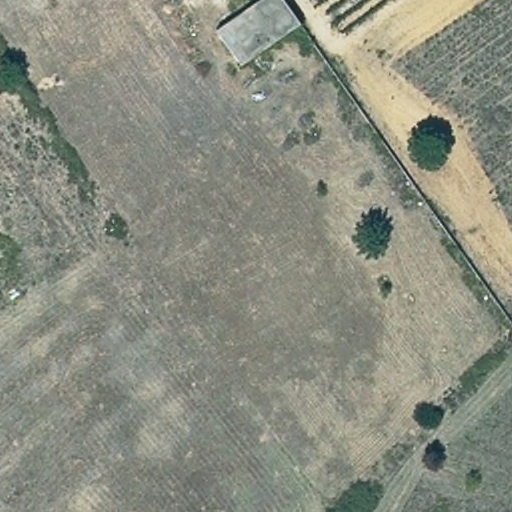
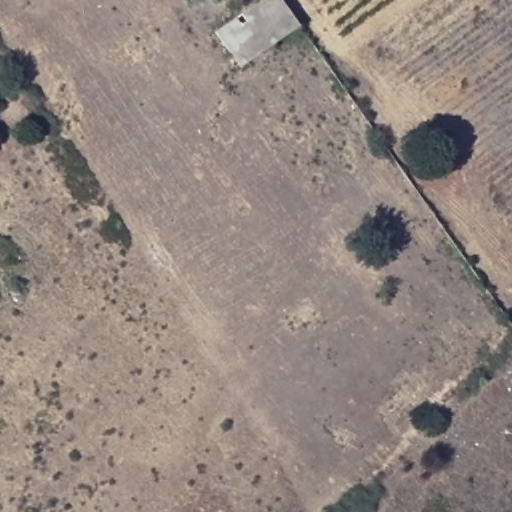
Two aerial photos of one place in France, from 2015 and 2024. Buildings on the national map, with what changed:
unchanged [(301,27),(241,68),(217,33),(264,0),(282,0),(301,27)]

